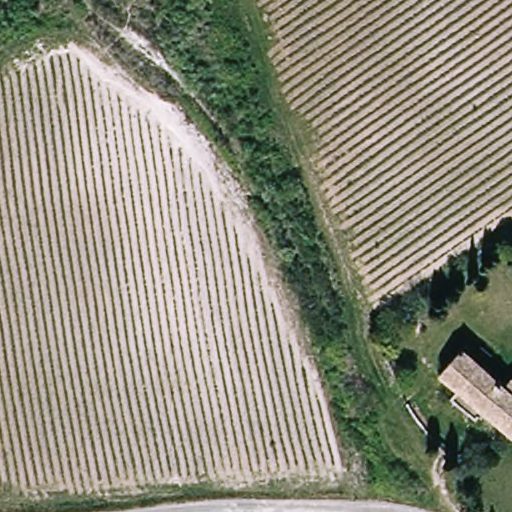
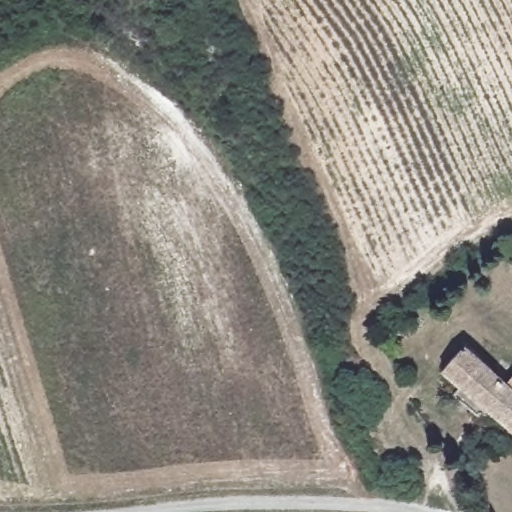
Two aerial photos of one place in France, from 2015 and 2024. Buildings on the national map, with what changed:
unchanged [(439,379),(462,354),(499,385),(508,376),(512,379),(512,441),(507,436),(439,379)]

